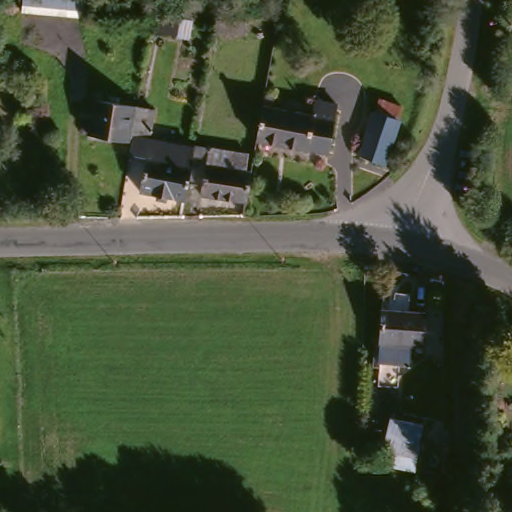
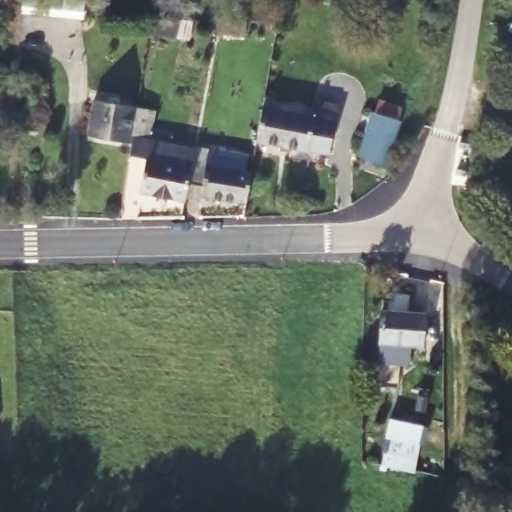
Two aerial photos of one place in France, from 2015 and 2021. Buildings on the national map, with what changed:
unchanged [(83,18),(67,17),(21,13),(22,0),(84,0),(83,18)]
unchanged [(152,22),(171,22),(170,24),(179,25),(175,39),(150,37),(152,22)]
unchanged [(265,105),(267,96),(271,97),(270,105),(312,113),(307,148),(259,140),(265,105)]
unchanged [(89,136),(96,101),(109,103),(110,97),(121,99),(120,105),(137,108),(156,111),(147,162),(129,159),(129,155),(131,143),(89,136)]
unchanged [(315,99),(336,103),(327,152),(307,148),(312,113),(315,99)]
unchanged [(386,163),(358,154),(371,113),(373,113),(378,100),(400,107),(396,120),(399,121),(386,163)]
unchanged [(246,156),(244,173),(251,174),(245,206),(202,198),(204,187),(188,184),(190,170),(195,147),(246,156)]
unchanged [(162,157),(172,159),(172,166),(190,170),(188,184),(184,203),(141,196),(147,162),(161,165),(162,157)]
unchanged [(425,300),(427,330),(417,331),(419,354),(387,356),(384,302),(425,300)]
unchanged [(410,423),(409,456),(376,453),(377,420),(410,423)]

